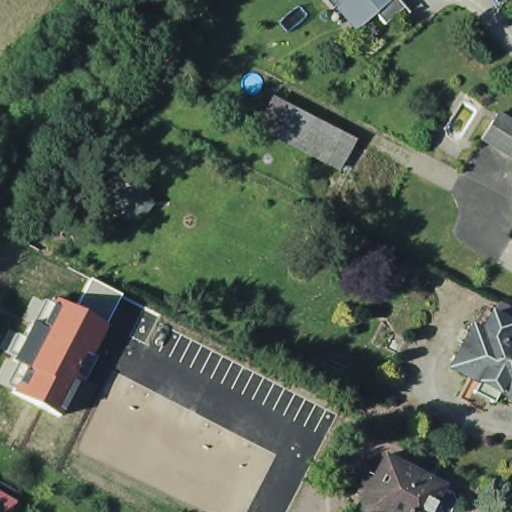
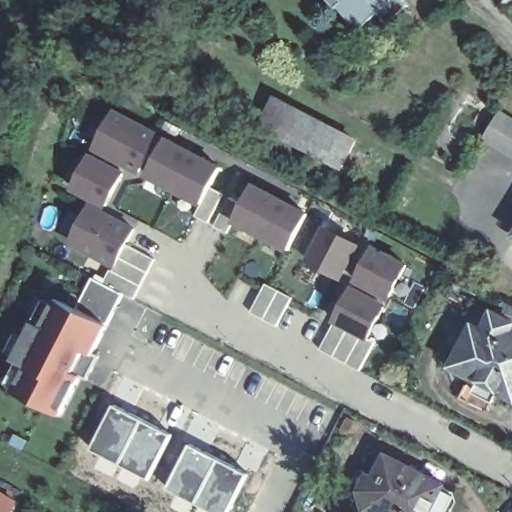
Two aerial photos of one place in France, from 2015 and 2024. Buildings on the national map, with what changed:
unchanged [(387,25),(377,14),(357,32),(329,0),(404,0),(409,6),(387,25)]
unchanged [(336,176),(314,165),(255,136),(268,109),(328,139),(350,150),(336,176)]
new [(93,151),(116,110),(160,134),(139,175),(93,151)]
unchanged [(480,141),(495,116),(512,126),(512,160),(480,141)]
new [(200,207),(147,177),(167,137),(222,167),(212,188),(222,194),(209,223),(196,216),(200,207)]
new [(108,210),(72,191),(91,154),(126,172),(108,210)]
new [(217,226),(230,199),(243,207),(255,184),(309,212),(288,252),(235,224),(228,233),(217,226)]
new [(129,244),(155,260),(134,299),(123,295),(103,283),(110,270),(112,272),(113,268),(67,244),(90,202),(137,227),(129,244)]
new [(342,281),(307,262),(325,225),(362,246),(342,281)]
unchanged [(510,232),(512,228),(512,234),(510,232)]
new [(355,282),(375,246),(408,265),(390,300),(355,282)]
unchanged [(76,311),(93,277),(123,295),(107,325),(93,354),(97,356),(85,381),(80,378),(60,417),(12,392),(15,387),(8,385),(18,363),(12,360),(14,356),(8,353),(17,334),(24,337),(32,322),(44,301),(53,306),(57,299),(76,311)]
new [(277,326),(250,312),(265,283),(293,298),(277,326)]
new [(370,340),(375,343),(360,371),(320,350),(333,323),(352,286),(387,304),(370,340)]
unchanged [(488,411),(460,396),(472,375),(453,365),(475,323),(483,328),(493,311),(512,321),(512,323),(509,329),(512,331),(512,395),(500,388),(488,411)]
new [(113,404),(173,435),(150,481),(90,450),(113,404)]
new [(190,443),(252,473),(230,512),(209,512),(166,489),(190,443)]
unchanged [(376,512),(360,503),(352,485),(362,467),(370,471),(382,448),(440,478),(438,481),(448,487),(448,497),(440,512),(392,512),(379,505),(376,512)]
unchanged [(13,512),(0,512),(0,492),(18,503),(13,512)]

